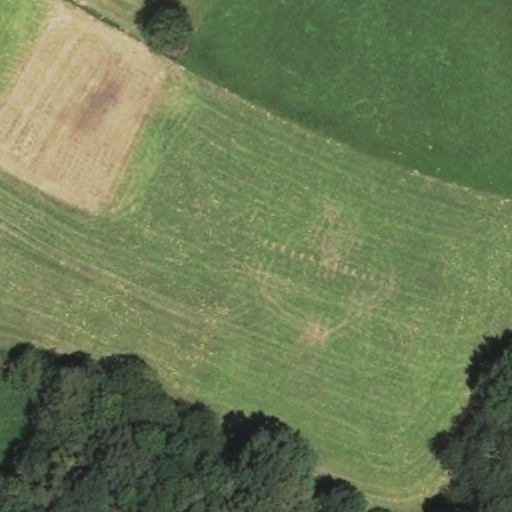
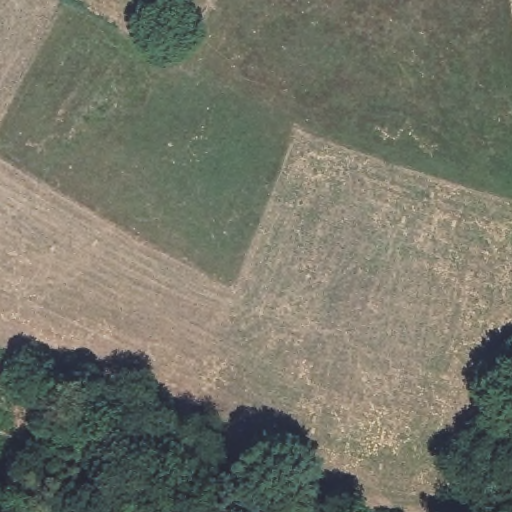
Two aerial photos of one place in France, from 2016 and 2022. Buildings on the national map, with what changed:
unchanged [(480,506),(479,512),(444,512),(445,500),(480,506)]

